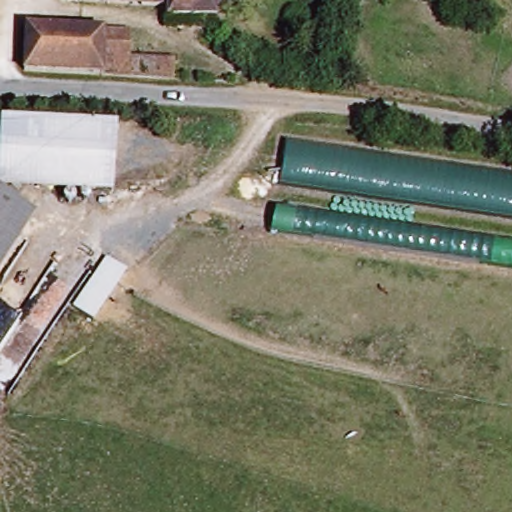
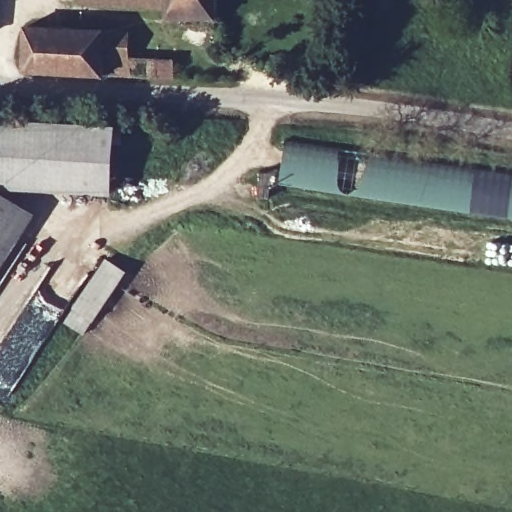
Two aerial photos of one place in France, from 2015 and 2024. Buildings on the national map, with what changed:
unchanged [(165,19),(165,6),(78,1),(79,0),(210,0),(209,20),(165,19)]
unchanged [(175,80),(23,71),(25,29),(125,32),(125,47),(177,50),(175,80)]
unchanged [(113,196),(0,190),(0,120),(117,126),(113,196)]
unchanged [(278,187),(287,140),(512,175),(512,222),(278,187)]
unchanged [(0,193),(30,212),(0,260),(0,193)]
unchanged [(274,237),(278,210),(512,247),(512,274),(274,237)]
unchanged [(94,321),(75,308),(107,258),(127,273),(94,321)]

